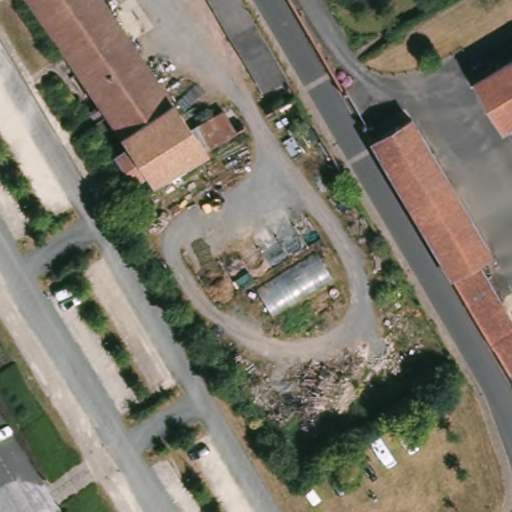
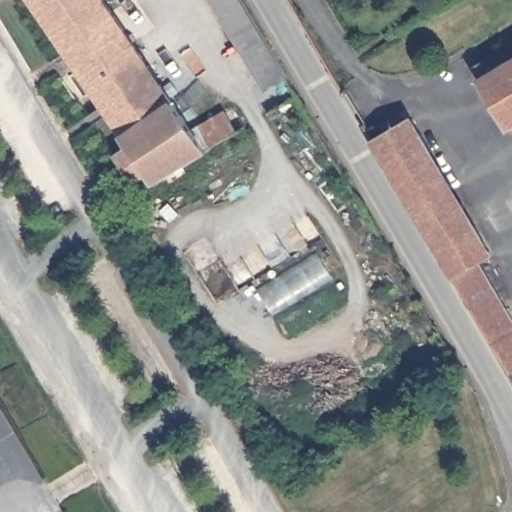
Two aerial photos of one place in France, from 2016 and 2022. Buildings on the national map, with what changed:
unchanged [(110,154),(124,145),(25,0),(98,0),(188,133),(220,113),(232,134),(150,182),(144,174),(129,185),(110,154)]
unchanged [(261,90),(207,0),(237,0),(261,40),(283,77),(261,90)]
unchanged [(504,127),(475,77),(512,55),(512,130),(509,125),(504,127)]
unchanged [(282,104),(275,92),(288,85),(294,97),(282,104)]
unchanged [(455,283),(431,242),(414,212),(372,141),(413,119),(454,190),(491,254),(477,262),(501,302),(512,322),(512,371),(508,373),(480,325),(455,283)]

